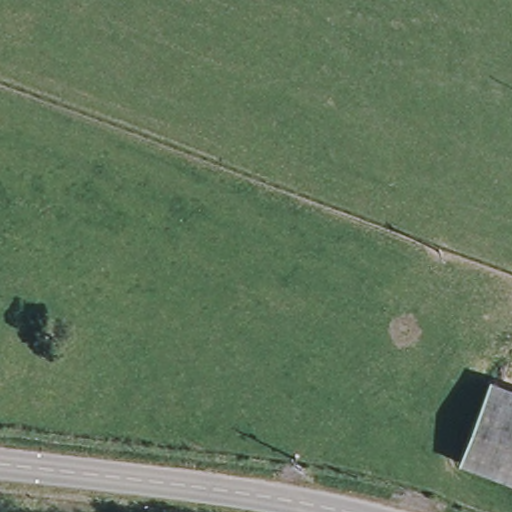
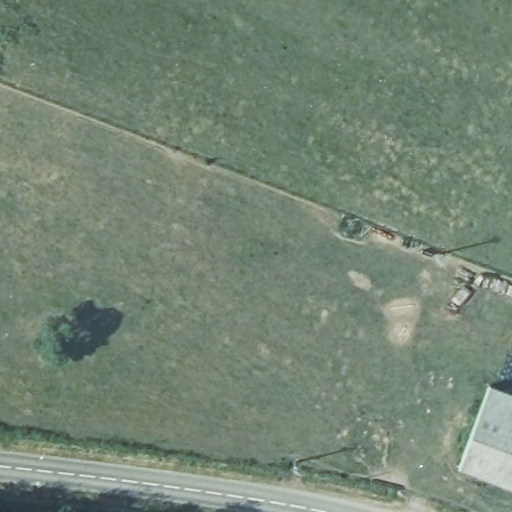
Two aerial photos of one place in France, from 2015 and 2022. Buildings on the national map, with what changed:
unchanged [(512,483),(460,463),(489,380),(512,389),(512,483)]

